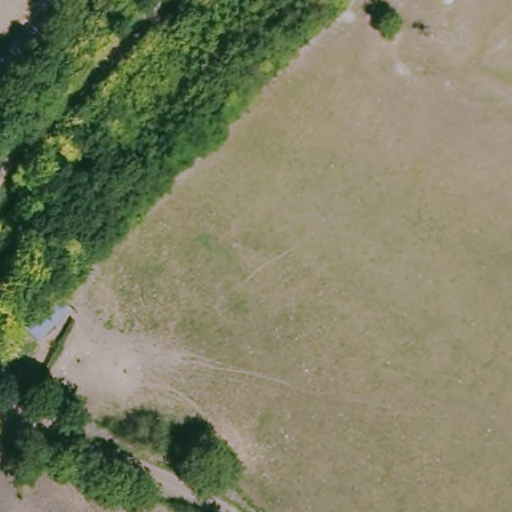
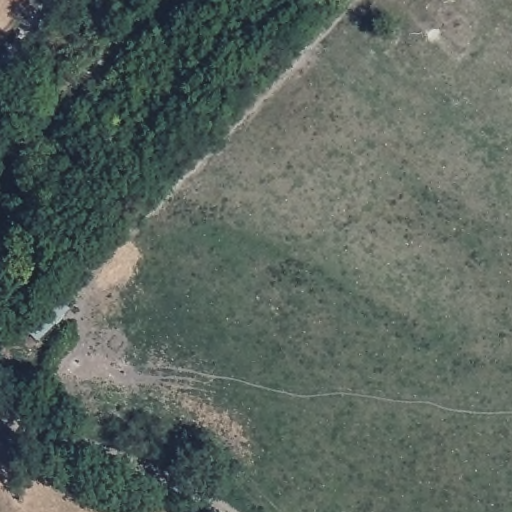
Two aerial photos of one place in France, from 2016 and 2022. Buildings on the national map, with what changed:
unchanged [(54,291),(68,306),(36,341),(21,326),(54,291)]
unchanged [(88,496),(93,479),(135,496),(128,512),(121,512),(88,496)]

